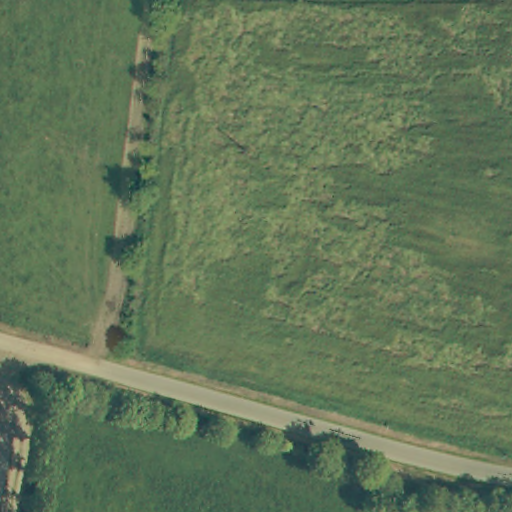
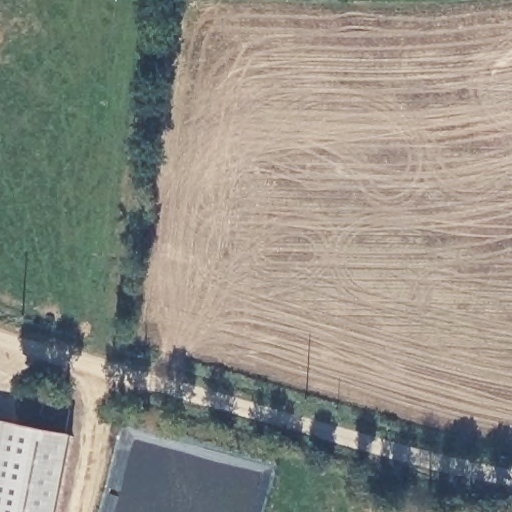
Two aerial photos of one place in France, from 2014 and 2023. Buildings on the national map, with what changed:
unchanged [(0,466),(0,426),(8,428),(0,466)]
new [(71,438),(58,512),(0,512),(0,465),(8,428),(71,438)]

